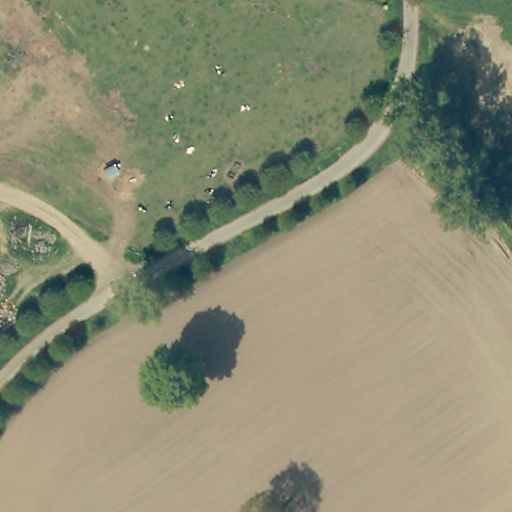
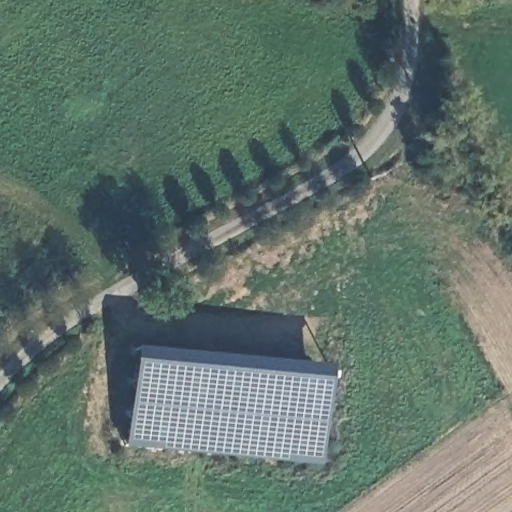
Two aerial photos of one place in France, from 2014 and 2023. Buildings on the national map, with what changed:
new [(319,466),(122,447),(134,349),(329,367),(319,466)]

